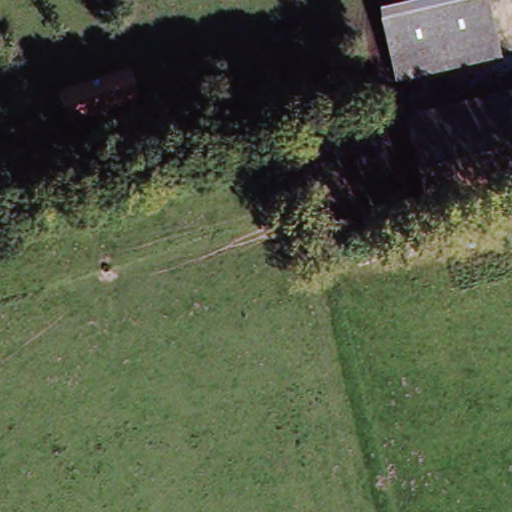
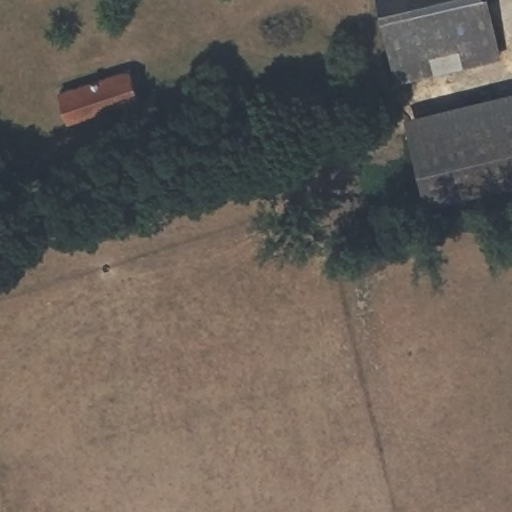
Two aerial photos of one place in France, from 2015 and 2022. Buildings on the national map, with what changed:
unchanged [(488,0),(384,29),(374,0),(488,0)]
unchanged [(488,0),(490,0),(503,44),(398,74),(384,29),(488,0)]
unchanged [(56,94),(125,70),(136,101),(68,125),(56,94)]
unchanged [(411,121),(512,89),(512,161),(433,187),(411,121)]

